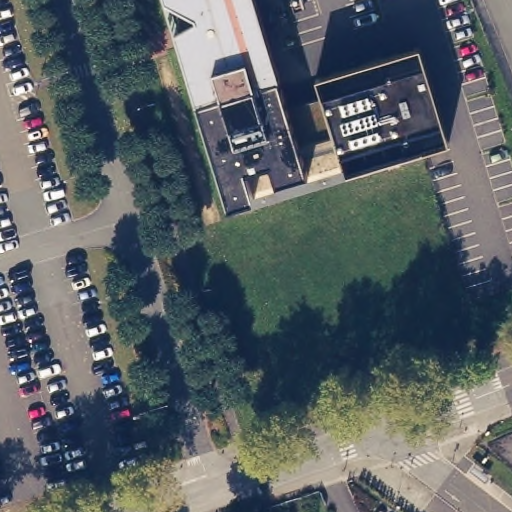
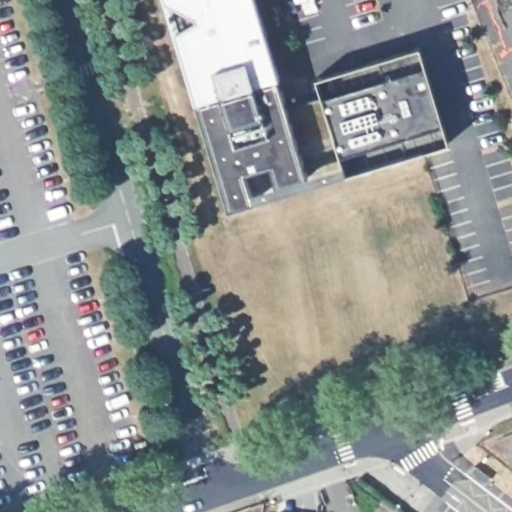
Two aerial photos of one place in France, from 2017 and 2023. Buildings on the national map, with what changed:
unchanged [(343,174),(333,146),(302,156),(309,184),(277,195),(270,165),(245,171),(253,201),(227,209),(163,0),(256,0),(287,106),(322,96),(315,76),(420,45),(450,143),(343,174)]

